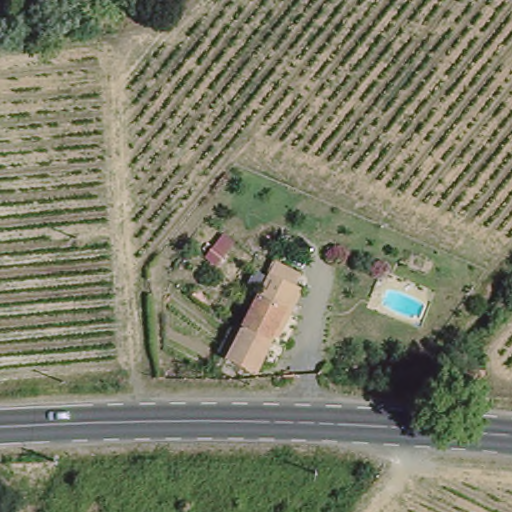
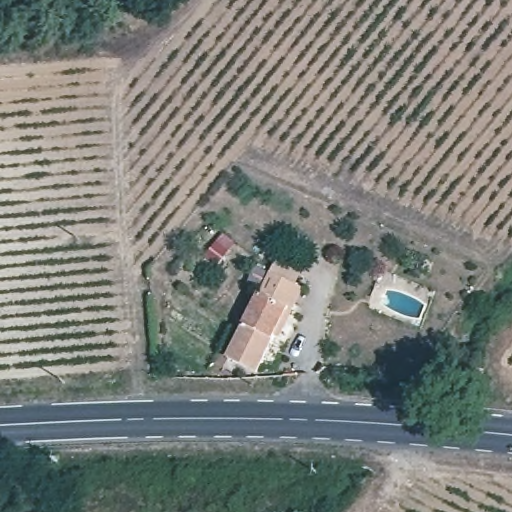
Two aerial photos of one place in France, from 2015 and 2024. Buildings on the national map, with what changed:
unchanged [(275,253),(302,268),(283,303),(255,288),(275,253)]
unchanged [(243,358),(240,364),(237,368),(226,367),(215,361),(255,288),(283,303),(252,362),(243,358)]

